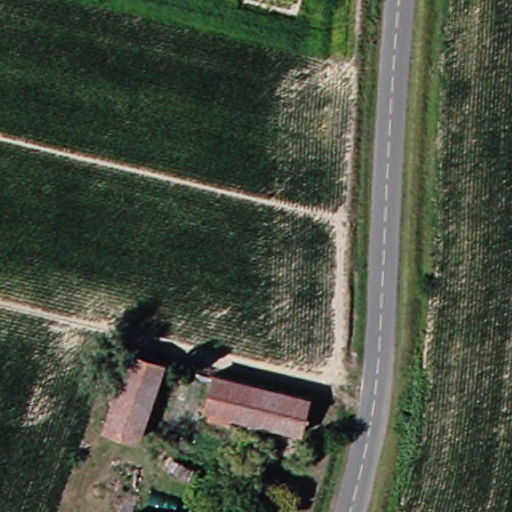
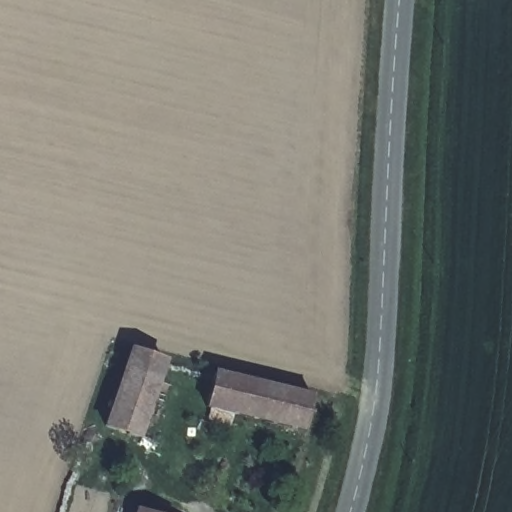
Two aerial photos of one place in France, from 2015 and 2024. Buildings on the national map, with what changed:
unchanged [(122,353),(156,363),(132,436),(99,425),(122,353)]
unchanged [(305,400),(296,433),(200,408),(209,374),(305,400)]

